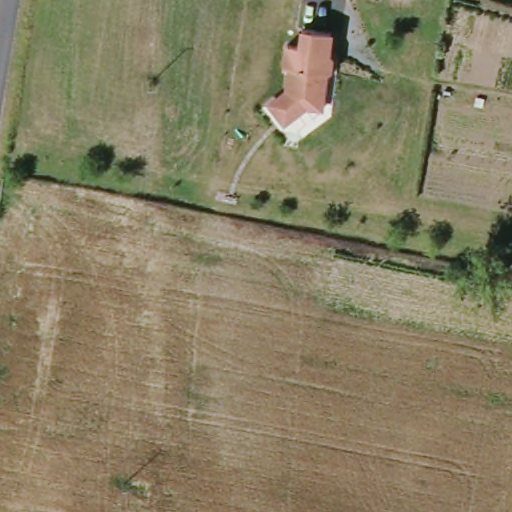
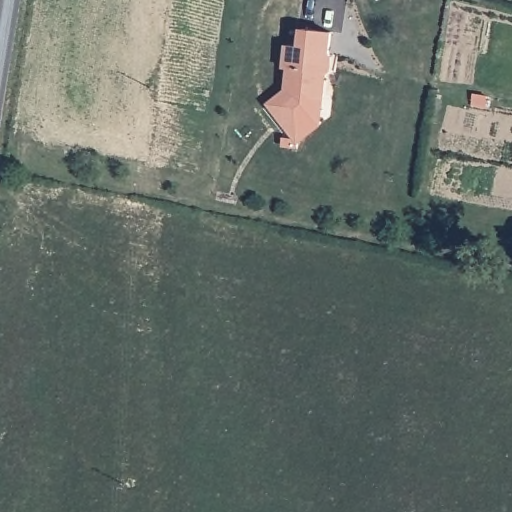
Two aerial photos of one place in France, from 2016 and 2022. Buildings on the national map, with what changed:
unchanged [(273,103),(279,98),(291,89),(291,68),(288,68),(290,45),(304,46),(306,29),(334,32),(333,52),(336,57),(334,69),(330,72),(327,108),(311,106),(293,118),(288,123),(273,103)]

